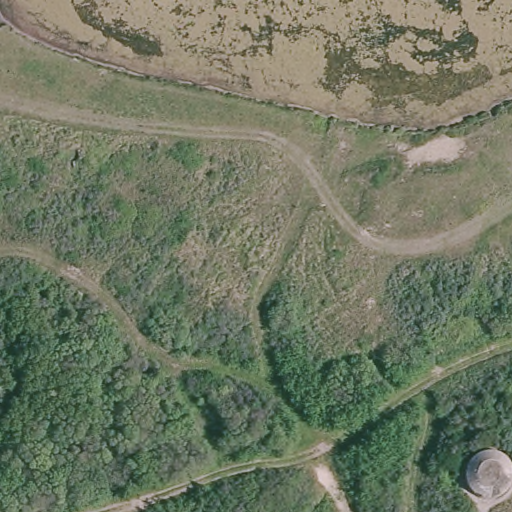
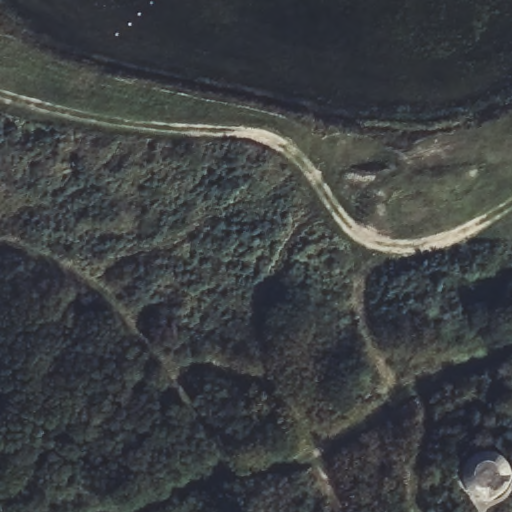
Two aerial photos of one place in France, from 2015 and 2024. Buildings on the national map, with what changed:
unchanged [(455,487),(455,472),(470,465),(485,461),(495,466),(512,468),(512,512),(472,512),(467,504),(455,487)]

